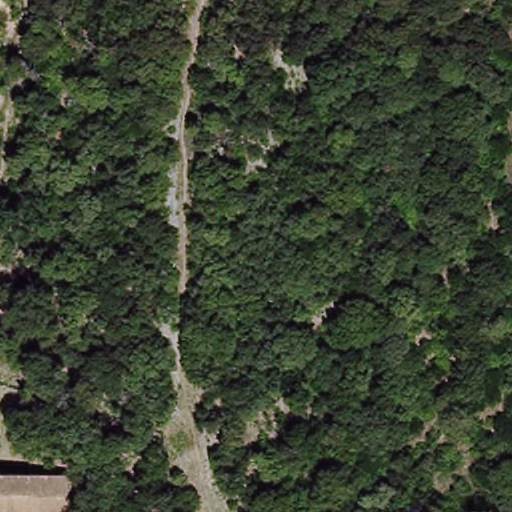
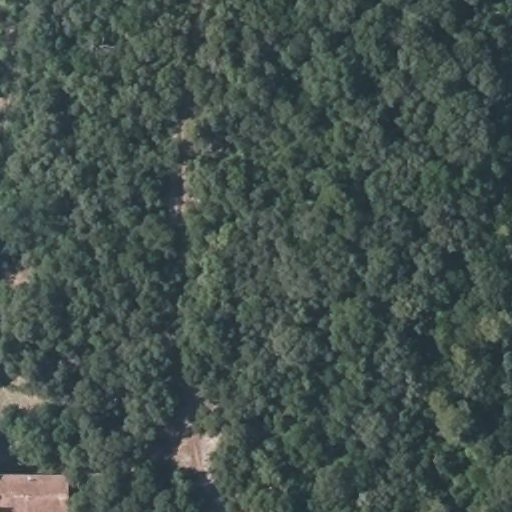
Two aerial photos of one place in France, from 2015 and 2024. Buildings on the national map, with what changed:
unchanged [(78,484),(75,512),(0,512),(0,476),(78,484)]

